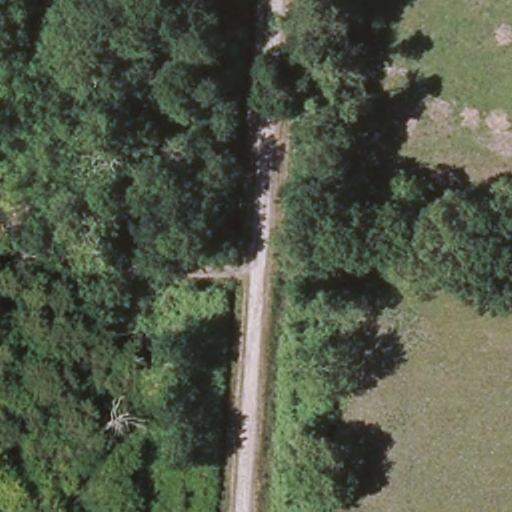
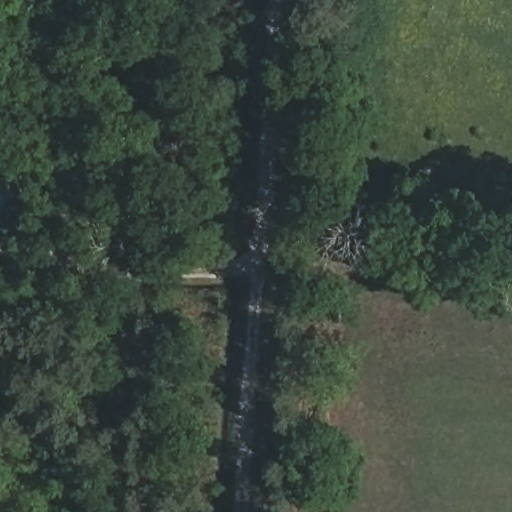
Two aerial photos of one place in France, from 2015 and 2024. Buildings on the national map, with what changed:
[]

